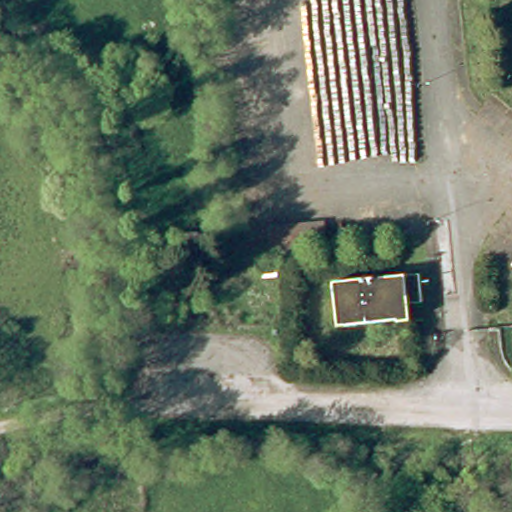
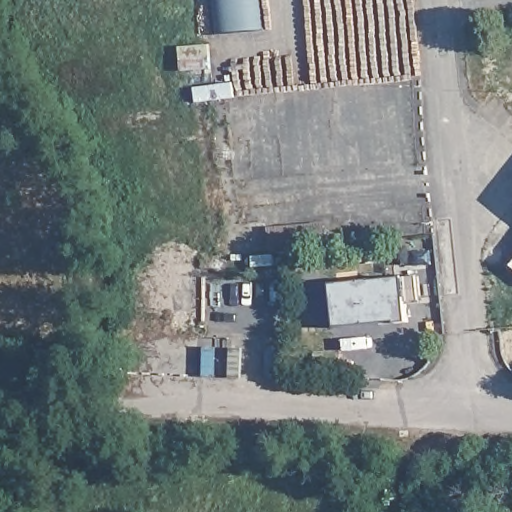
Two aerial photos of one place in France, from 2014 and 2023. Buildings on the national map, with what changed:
new [(263,27),(214,32),(211,0),(260,0),(263,27)]
unchanged [(326,251),(271,256),(269,228),(324,226),(326,251)]
unchanged [(511,269),(512,268),(512,270),(511,269)]
unchanged [(422,297),(402,298),(404,320),(339,329),(334,288),(419,278),(422,297)]

